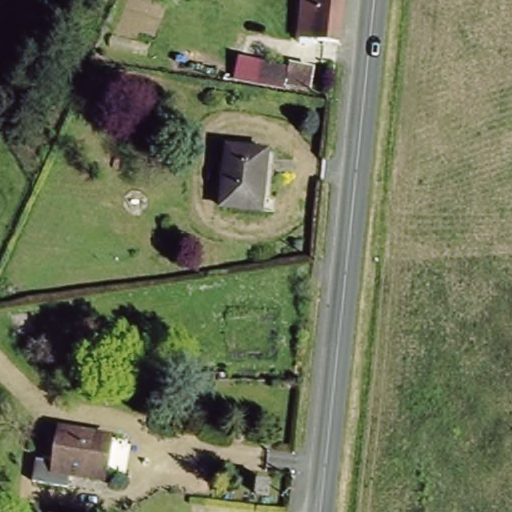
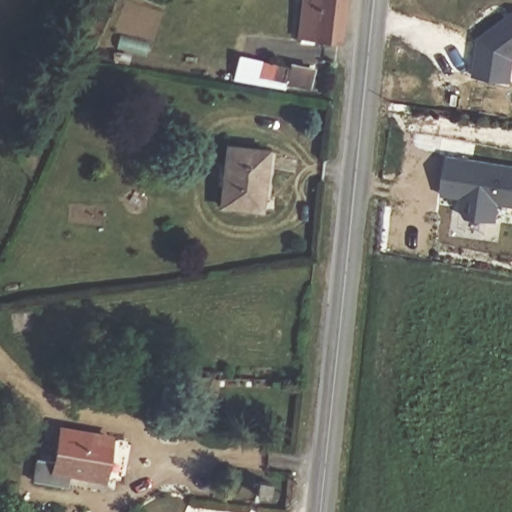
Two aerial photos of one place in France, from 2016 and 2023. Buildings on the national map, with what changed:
unchanged [(297,33),(300,0),(344,0),(340,40),(337,39),(315,37),(315,35),(297,33)]
new [(477,38),(512,12),(512,59),(512,60),(507,82),(471,77),(477,38)]
unchanged [(260,57),(289,62),(290,60),(317,65),(312,87),(285,83),(284,87),(260,82),(261,77),(257,76),(260,57)]
unchanged [(217,202),(223,143),(264,147),(270,149),(265,192),(259,192),(257,206),(217,202)]
new [(450,156),(512,165),(512,205),(502,203),(499,221),(469,217),(461,208),(464,197),(444,194),(445,182),(450,156)]
unchanged [(111,436),(105,474),(70,468),(68,484),(33,478),(37,457),(55,460),(60,427),(111,436)]
unchanged [(267,480),(265,492),(254,491),(256,478),(267,480)]

